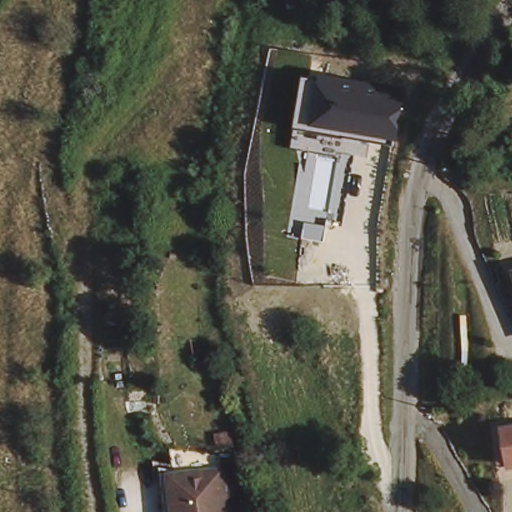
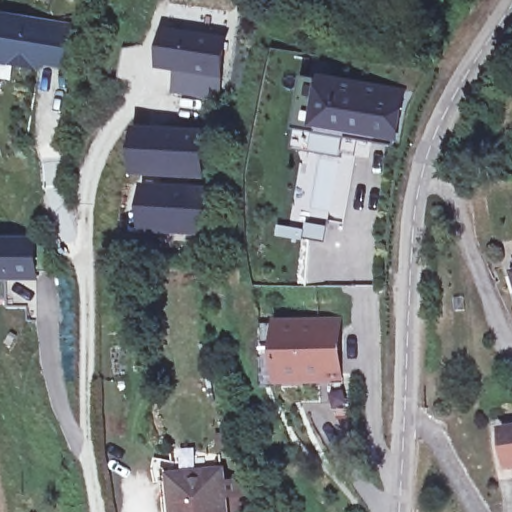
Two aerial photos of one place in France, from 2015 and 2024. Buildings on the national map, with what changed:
new [(73,70),(40,66),(40,71),(0,66),(0,14),(80,25),(73,70)]
new [(226,37),(217,99),(173,92),(176,73),(158,70),(164,29),(226,37)]
unchanged [(306,77),(317,79),(318,72),(407,87),(398,141),(393,140),(392,145),(297,130),(306,77)]
new [(204,179),(133,175),(136,127),(205,130),(204,179)]
new [(211,236),(142,234),(144,185),(212,188),(211,236)]
new [(0,237),(32,236),(45,235),(55,255),(55,271),(39,272),(38,281),(0,282),(0,237)]
new [(260,322),(272,320),(342,318),(345,383),(277,385),(262,388),(260,322)]
new [(350,413),(351,443),(339,443),(337,413),(350,413)]
unchanged [(512,425),(512,459),(503,460),(500,426),(512,425)]
unchanged [(232,464),(232,477),(171,480),(171,470),(185,472),(183,450),(232,464)]
unchanged [(232,477),(233,493),(240,497),(247,502),(248,512),(173,512),(171,480),(232,477)]

